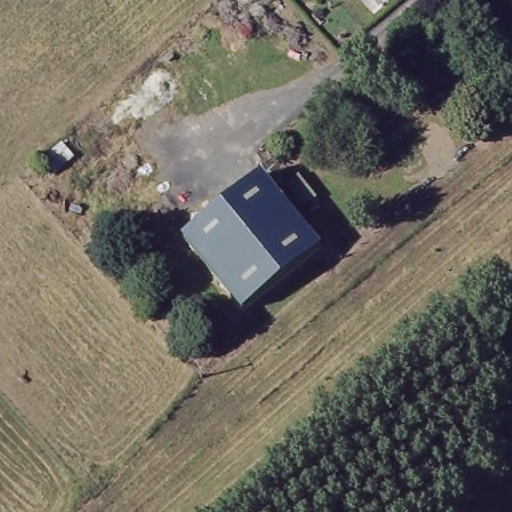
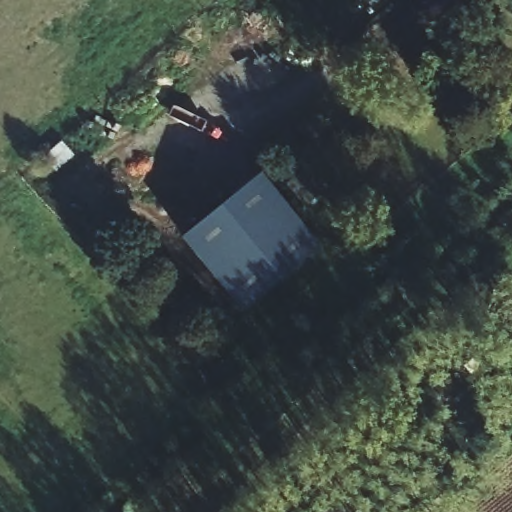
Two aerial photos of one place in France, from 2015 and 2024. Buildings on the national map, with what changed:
unchanged [(77,156),(53,177),(37,159),(62,139),(77,156)]
unchanged [(181,236),(260,171),(320,244),(243,309),(181,236)]
unchanged [(306,212),(283,184),(300,171),(320,199),(306,212)]
unchanged [(455,354),(461,348),(482,332),(500,351),(473,376),(455,354)]

